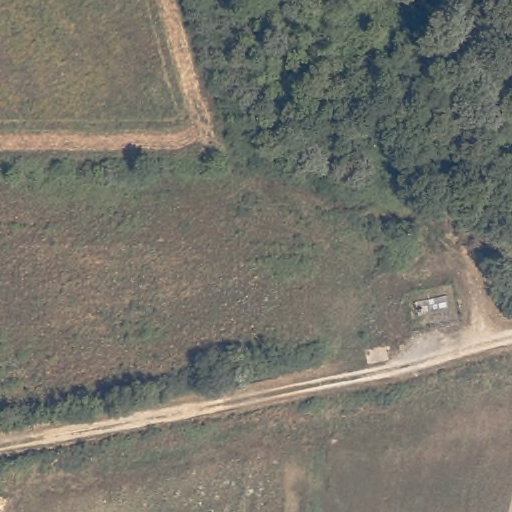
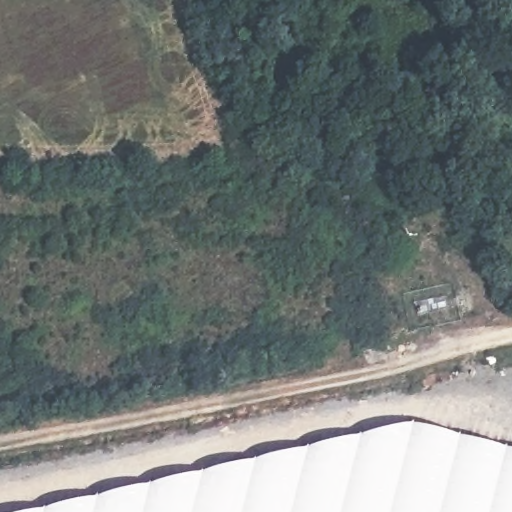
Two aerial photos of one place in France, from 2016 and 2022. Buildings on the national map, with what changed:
unchanged [(445,294),(446,311),(416,317),(413,302),(445,294)]
new [(409,423),(512,449),(512,512),(31,512),(409,423)]

